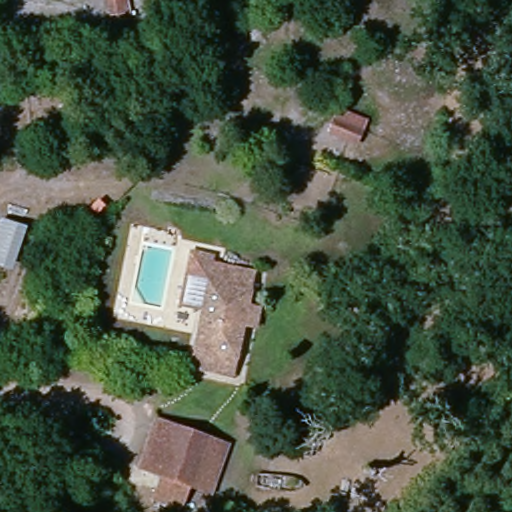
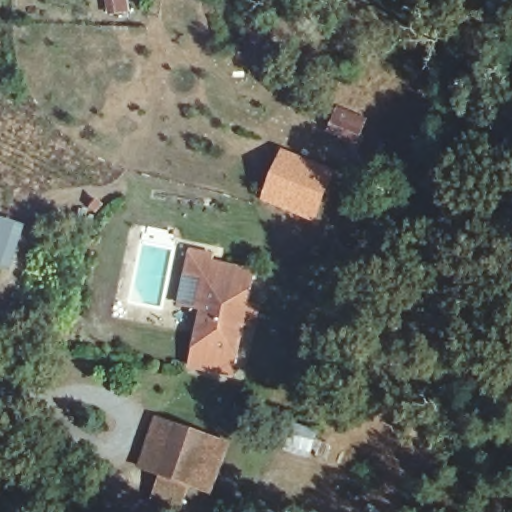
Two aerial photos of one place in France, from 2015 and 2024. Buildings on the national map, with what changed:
new [(101,0),(129,0),(130,10),(134,9),(134,12),(103,16),(101,0)]
new [(261,201),(282,150),(335,173),(315,223),(261,201)]
unchanged [(29,225),(14,272),(0,266),(0,220),(1,216),(29,225)]
unchanged [(222,263),(209,309),(187,303),(201,251),(222,256),(223,257),(222,263)]
unchanged [(260,332),(249,328),(234,374),(196,361),(209,309),(222,263),(266,278),(255,311),(266,315),(260,332)]
unchanged [(185,512),(179,512),(151,502),(159,477),(139,466),(158,418),(233,446),(216,493),(194,488),(185,512)]

